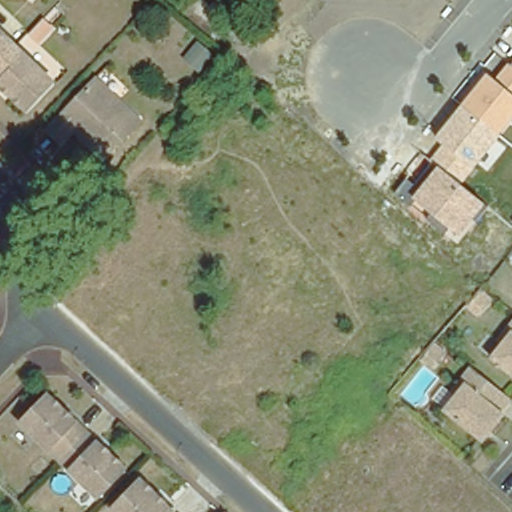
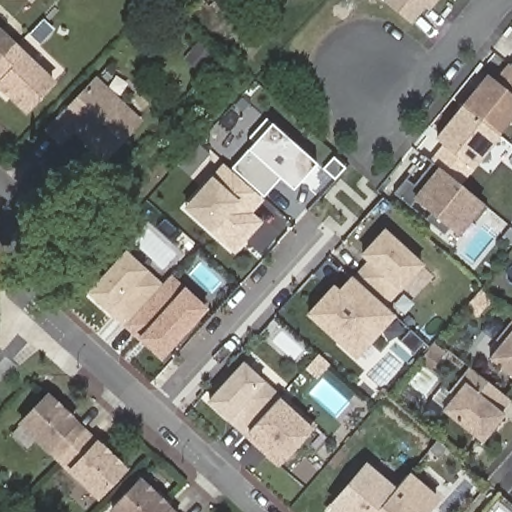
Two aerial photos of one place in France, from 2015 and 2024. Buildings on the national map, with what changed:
new [(426,9),(412,25),(397,12),(382,0),(438,0),(429,11),(426,9)]
unchanged [(40,41),(31,33),(42,20),(52,29),(40,41)]
unchanged [(15,46),(7,53),(0,60),(0,31),(15,46)]
unchanged [(53,82),(27,110),(0,84),(0,60),(7,53),(15,46),(53,82)]
unchanged [(477,170),(463,187),(485,203),(490,207),(477,224),(473,220),(461,236),(449,227),(444,233),(428,221),(433,213),(416,200),(411,207),(395,194),(407,179),(415,186),(433,162),(431,161),(443,144),(435,138),(487,74),(495,80),(507,63),(511,65),(512,64),(512,121),(475,167),(477,170)]
unchanged [(96,81),(139,122),(105,158),(72,128),(60,141),(48,130),(96,81)]
new [(254,142),(249,138),(266,118),(317,163),(293,190),(280,178),(263,197),(231,168),(254,142)]
new [(257,223),(231,252),(197,222),(182,207),(192,196),(208,178),(257,223)]
new [(370,261),(362,255),(384,230),(422,265),(383,306),(353,279),(370,261)]
new [(89,293),(126,253),(162,286),(171,277),(206,309),(161,358),(148,346),(141,341),(89,293)]
new [(333,284),(338,289),(351,276),(353,279),(383,306),(396,317),(356,360),(306,315),(333,284)]
unchanged [(469,313),(461,306),(471,294),(478,301),(469,313)]
unchanged [(496,342),(512,321),(512,378),(489,360),(500,346),(496,342)]
new [(240,364),(277,396),(243,436),(206,401),(240,364)]
unchanged [(456,400),(451,396),(471,371),(472,373),(509,402),(499,414),(502,416),(481,443),(445,414),(456,400)]
new [(243,436),(277,396),(278,394),(312,425),(277,467),(267,458),(256,447),(243,436)]
unchanged [(86,432),(60,460),(21,423),(47,396),(86,432)]
unchanged [(124,469),(97,496),(60,460),(86,432),(124,469)]
new [(327,510),(365,466),(393,489),(407,474),(434,497),(421,512),(330,512),(327,510)]
unchanged [(114,511),(141,482),(173,512),(115,512),(114,511)]

